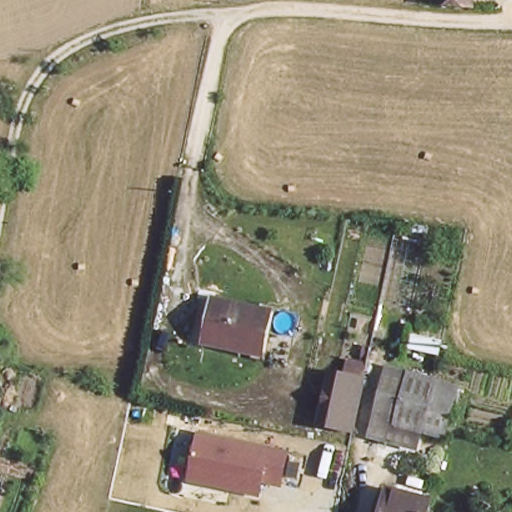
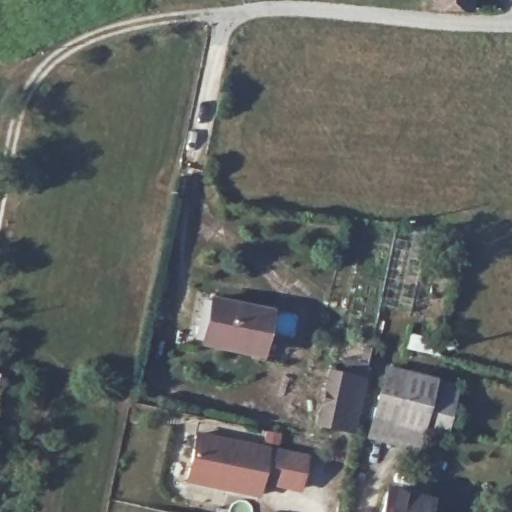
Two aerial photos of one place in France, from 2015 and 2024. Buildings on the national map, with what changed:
unchanged [(474,7),(436,5),(436,0),(474,0),(474,6),(474,7)]
unchanged [(263,349),(256,348),(204,338),(212,296),(264,308),(272,310),(263,349)]
unchanged [(397,420),(423,426),(419,441),(371,429),(387,364),(409,369),(397,420)]
unchanged [(355,428),(318,421),(329,366),(365,373),(355,428)]
unchanged [(439,376),(457,381),(455,388),(452,401),(445,432),(423,426),(397,420),(409,369),(434,375),(439,376)]
unchanged [(291,451),(284,488),(264,484),(262,499),(185,484),(195,431),(291,451)]
unchanged [(420,512),(378,512),(384,482),(425,492),(420,512)]

